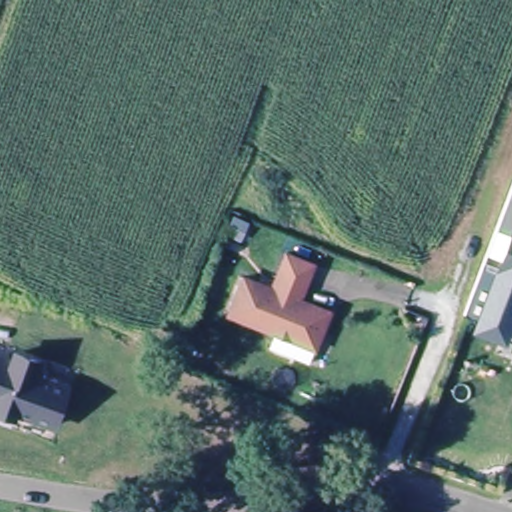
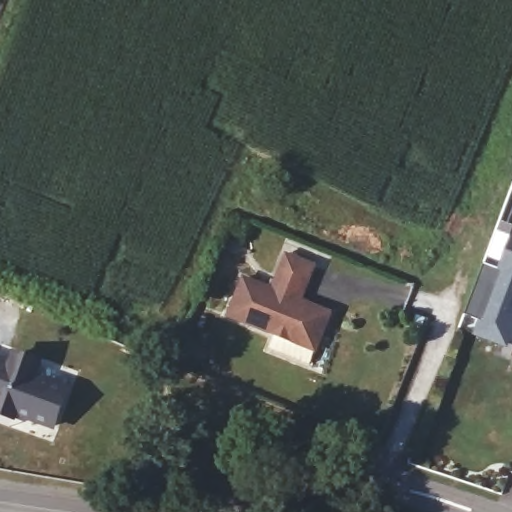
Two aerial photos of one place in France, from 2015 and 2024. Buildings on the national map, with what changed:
unchanged [(481,315),(475,313),(491,263),(502,266),(512,240),(512,340),(475,330),(481,315)]
unchanged [(232,313),(246,275),(275,286),(288,250),(317,261),(303,296),(333,307),(319,345),(232,313)]
unchanged [(55,426),(18,411),(16,416),(0,410),(0,401),(0,355),(16,361),(19,353),(42,362),(37,376),(70,388),(55,426)]

